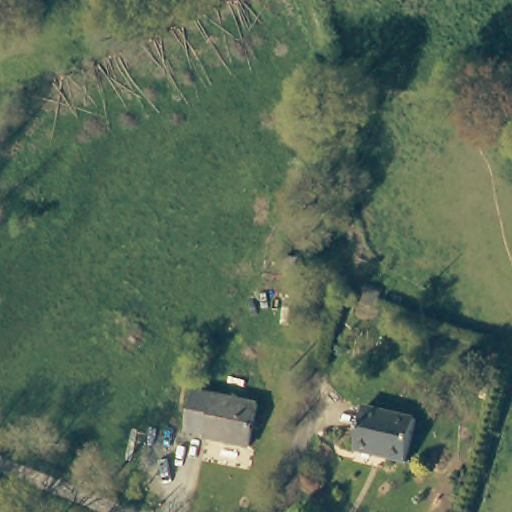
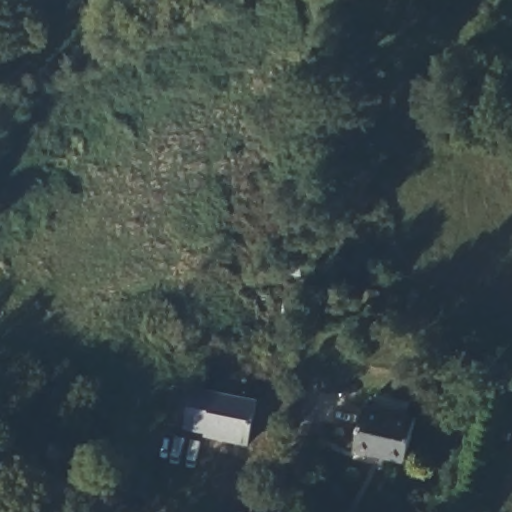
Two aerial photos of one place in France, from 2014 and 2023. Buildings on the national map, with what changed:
unchanged [(191,430),(198,391),(257,400),(250,443),(209,437),(209,432),(191,430)]
unchanged [(414,419),(410,440),(404,459),(388,456),(389,451),(357,445),(366,407),(414,419)]

